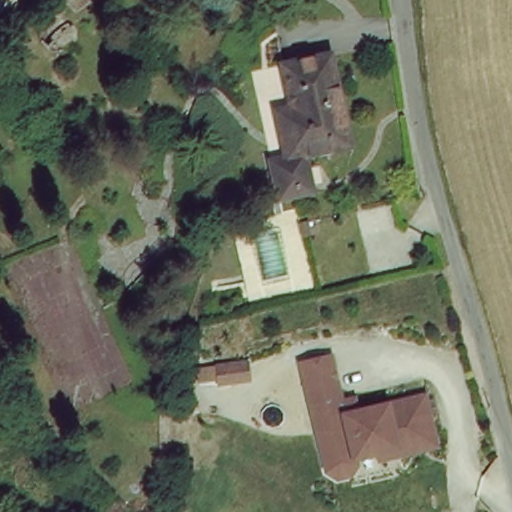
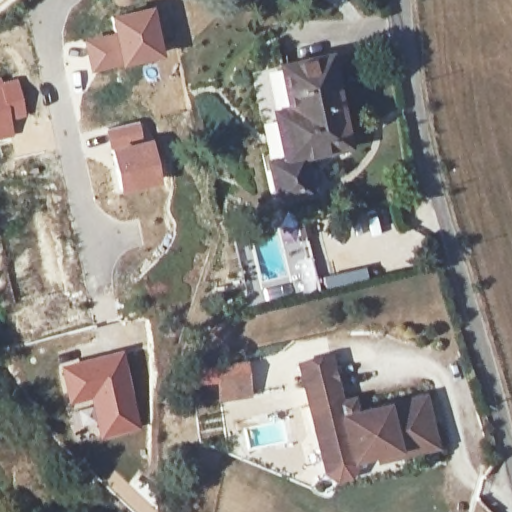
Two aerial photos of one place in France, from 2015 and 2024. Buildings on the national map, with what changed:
new [(110,31),(107,15),(154,4),(162,56),(89,75),(82,37),(110,31)]
unchanged [(355,140),(312,148),(315,187),(280,191),(278,152),(292,151),(284,104),(304,102),(300,58),(339,51),(355,140)]
new [(1,80),(17,77),(26,116),(10,120),(14,139),(0,142),(0,80),(1,80)]
new [(160,181),(118,190),(108,147),(104,128),(139,121),(144,139),(151,137),(160,181)]
new [(125,350),(142,429),(99,440),(88,400),(67,405),(57,364),(125,350)]
unchanged [(378,463),(375,451),(355,456),(358,467),(351,478),(339,482),(328,475),(300,365),(329,357),(341,404),(354,401),(357,414),(424,397),(433,431),(437,448),(378,463)]
unchanged [(213,390),(211,373),(241,370),(243,387),(213,390)]
new [(148,498),(151,502),(153,512),(134,512),(103,482),(114,470),(148,498)]

